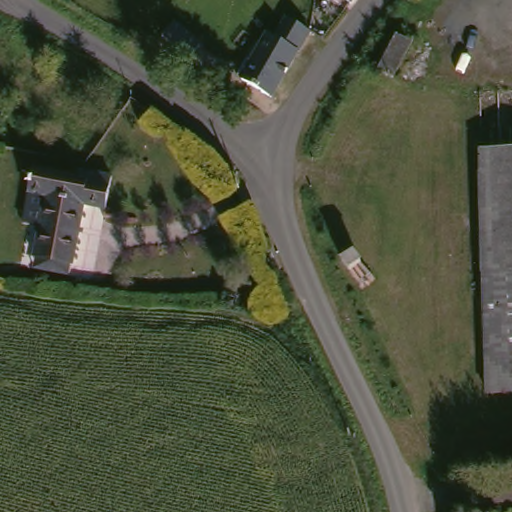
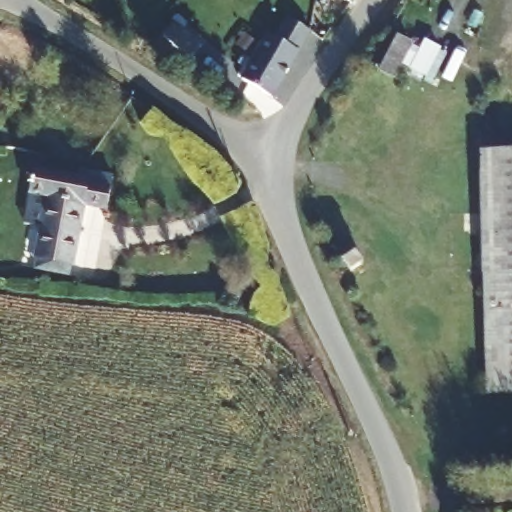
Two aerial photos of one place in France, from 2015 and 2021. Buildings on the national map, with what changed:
unchanged [(352,0),(354,0),(353,1),(352,0)]
unchanged [(272,32),(277,36),(290,16),(313,30),(275,96),(246,78),(272,32)]
unchanged [(179,27),(206,49),(195,62),(167,40),(179,27)]
unchanged [(396,76),(380,67),(399,36),(412,44),(396,76)]
unchanged [(495,389),(486,147),(512,146),(512,389),(495,389)]
unchanged [(37,267),(39,253),(41,236),(49,195),(32,191),(37,169),(90,177),(92,170),(116,174),(115,176),(111,206),(85,202),(74,259),(70,272),(37,267)]

